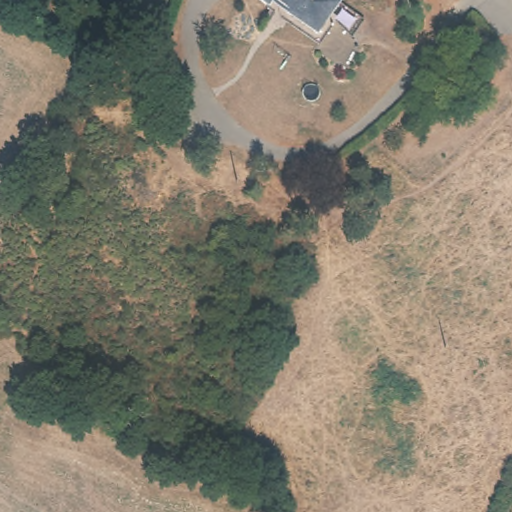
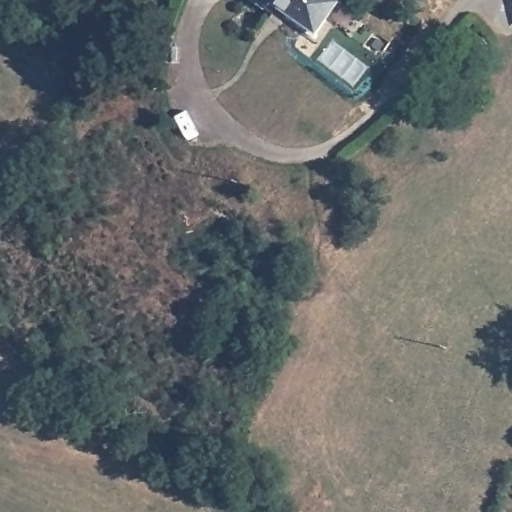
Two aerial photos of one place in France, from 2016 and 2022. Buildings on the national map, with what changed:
unchanged [(313,39),(261,4),(263,0),(340,0),(313,39)]

